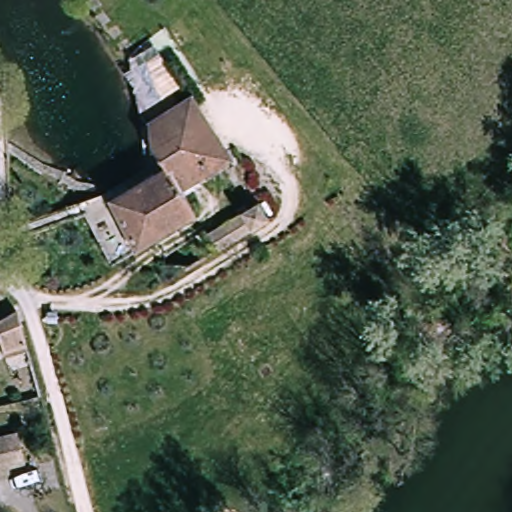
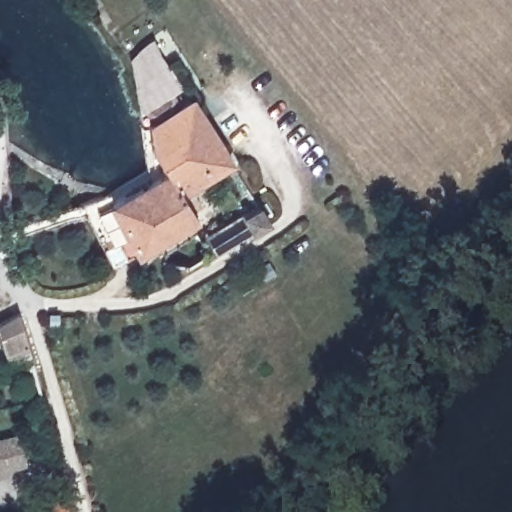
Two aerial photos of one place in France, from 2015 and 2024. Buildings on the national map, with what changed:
unchanged [(185,98),(220,153),(263,220),(222,247),(211,252),(201,235),(236,214),(233,207),(242,201),(219,165),(179,189),(192,213),(134,249),(107,201),(164,168),(142,125),(185,98)]
unchanged [(1,356),(0,354),(0,321),(17,311),(28,347),(1,356)]
unchanged [(0,474),(0,443),(18,439),(21,448),(25,467),(0,474)]

